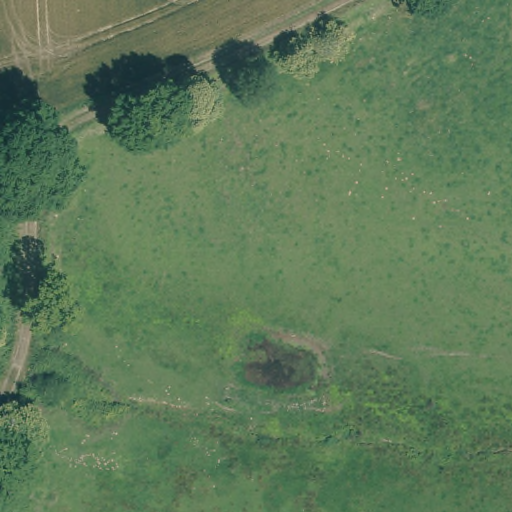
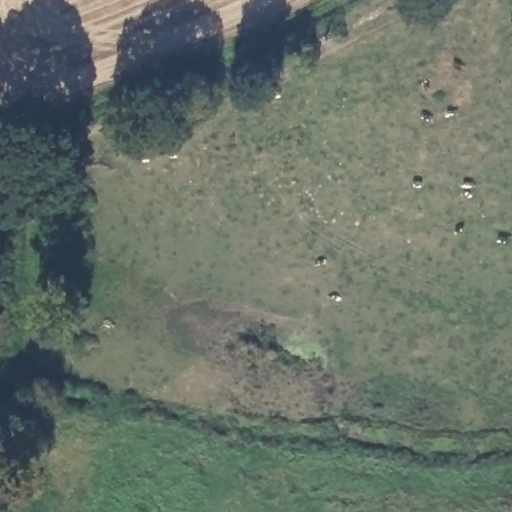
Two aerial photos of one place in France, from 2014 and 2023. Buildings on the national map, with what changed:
[]

